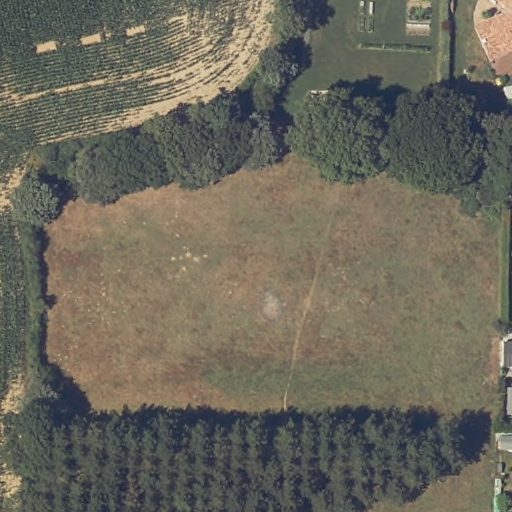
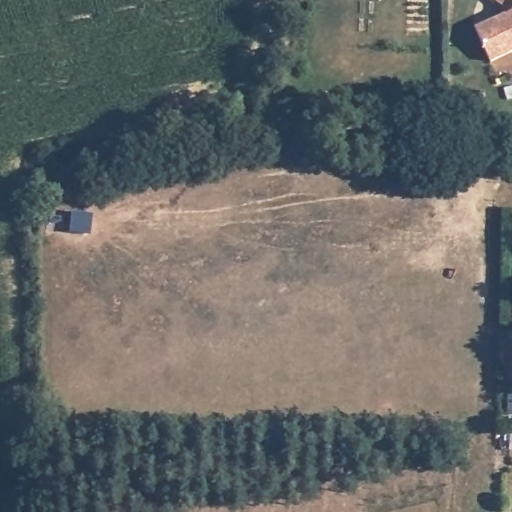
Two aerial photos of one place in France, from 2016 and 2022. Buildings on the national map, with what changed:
unchanged [(488,0),(512,0),(512,47),(482,60),(468,27),(496,15),(496,7),(488,0)]
unchanged [(497,352),(497,330),(512,330),(512,368),(496,368),(497,352)]

